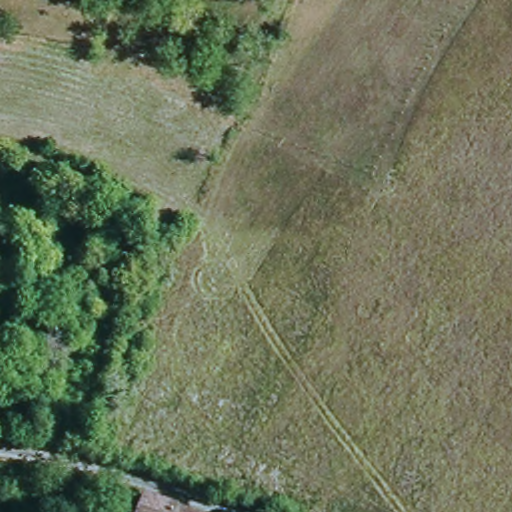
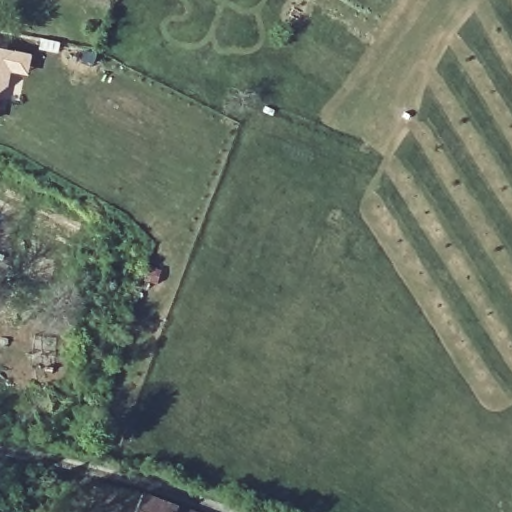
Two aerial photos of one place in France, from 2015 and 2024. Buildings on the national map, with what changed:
new [(34,53),(31,70),(14,67),(11,83),(0,92),(0,48),(16,50),(34,53)]
unchanged [(185,507),(197,512),(134,512),(143,493),(185,507)]

